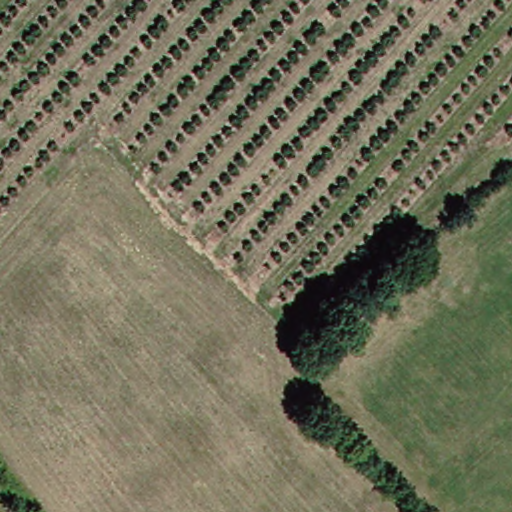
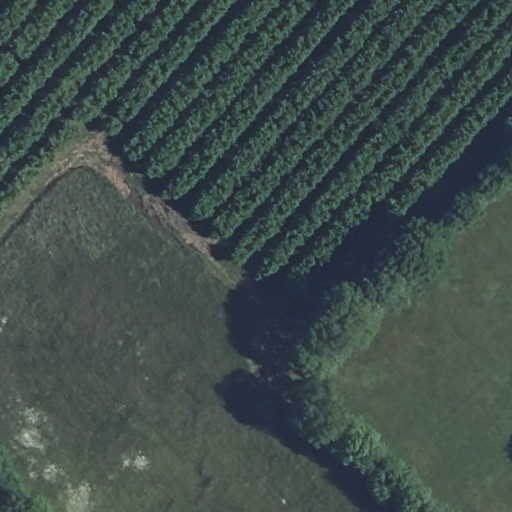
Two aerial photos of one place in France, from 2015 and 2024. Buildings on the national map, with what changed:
[]

